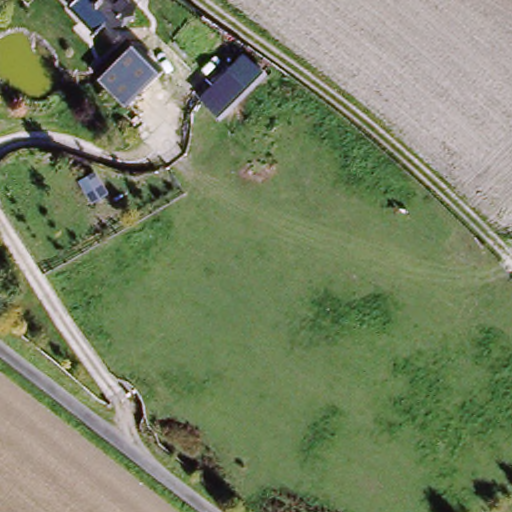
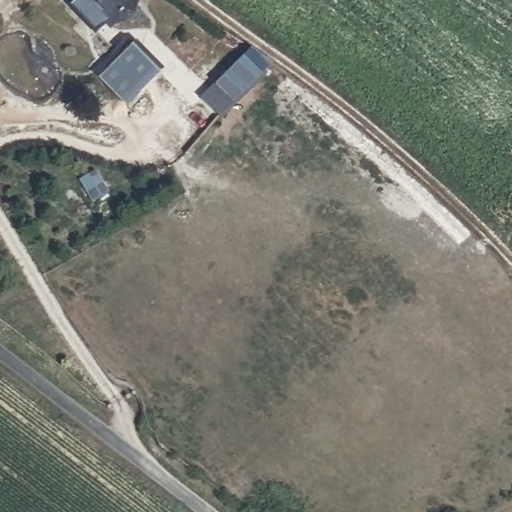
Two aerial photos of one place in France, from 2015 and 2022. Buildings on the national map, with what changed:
unchanged [(61,2),(64,0),(125,0),(130,5),(109,26),(97,14),(85,27),(61,2)]
unchanged [(125,92),(109,77),(134,49),(152,66),(125,92)]
unchanged [(200,103),(244,58),(261,73),(217,120),(200,103)]

